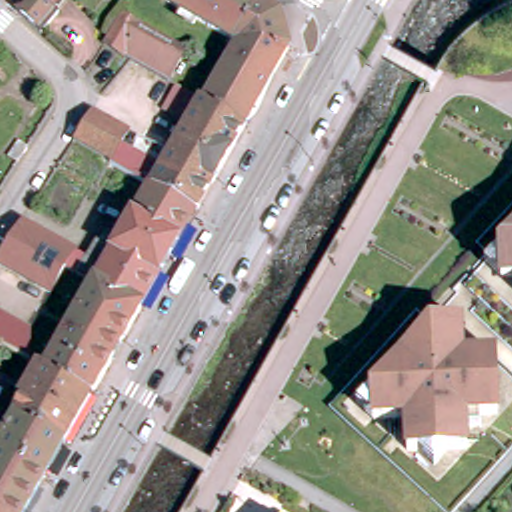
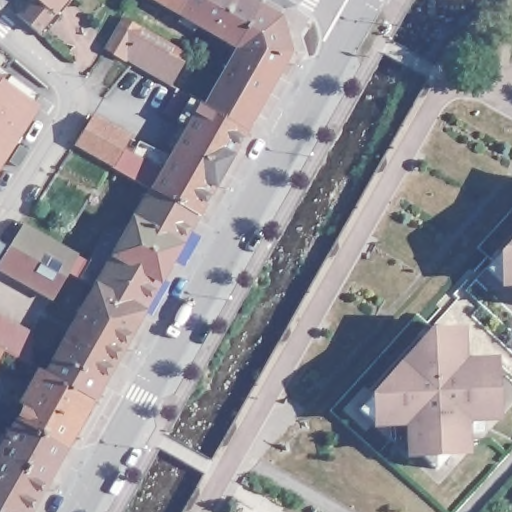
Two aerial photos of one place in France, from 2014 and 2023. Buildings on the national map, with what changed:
unchanged [(23,19),(27,14),(39,0),(70,0),(59,13),(64,18),(50,34),(47,38),(23,19)]
unchanged [(158,0),(190,0),(181,14),(158,0)]
unchanged [(294,54),(250,131),(211,108),(233,70),(228,68),(239,48),(181,14),(190,0),(250,0),(262,7),(286,20),(294,54)]
unchanged [(174,87),(135,64),(127,60),(109,49),(127,18),(145,29),(192,56),(174,87)]
new [(0,169),(0,80),(39,107),(0,169)]
unchanged [(194,131),(169,116),(182,92),(211,108),(250,131),(221,182),(177,161),(194,131)]
unchanged [(221,182),(202,215),(157,190),(78,145),(96,117),(133,139),(126,151),(137,157),(140,151),(144,144),(151,148),(177,161),(221,182)]
unchanged [(147,314),(102,288),(86,279),(94,265),(111,235),(122,230),(131,235),(157,190),(202,215),(147,314)]
unchanged [(27,227),(94,265),(86,279),(73,271),(19,240),(27,227)]
unchanged [(469,282),(512,235),(512,318),(469,282)]
unchanged [(1,268),(19,240),(73,271),(56,300),(1,268)]
unchanged [(102,288),(147,314),(98,402),(52,376),(102,288)]
unchanged [(7,325),(21,326),(21,334),(35,334),(37,336),(37,367),(8,352),(0,347),(0,317),(7,317),(7,325)]
unchanged [(467,453),(451,454),(436,471),(419,455),(409,456),(407,424),(375,426),(358,411),(373,394),(422,338),(430,330),(460,329),(462,361),(495,360),(499,418),(482,419),(482,432),(467,433),(467,453)]
unchanged [(0,365),(0,347),(8,352),(0,365)]
unchanged [(33,409),(26,405),(45,372),(52,376),(98,402),(71,449),(25,423),(33,409)]
unchanged [(0,512),(0,464),(2,461),(0,460),(0,455),(11,436),(15,439),(25,423),(71,449),(36,512),(0,512)]

